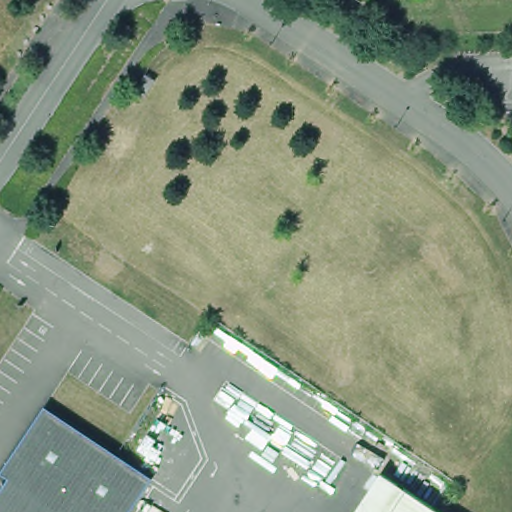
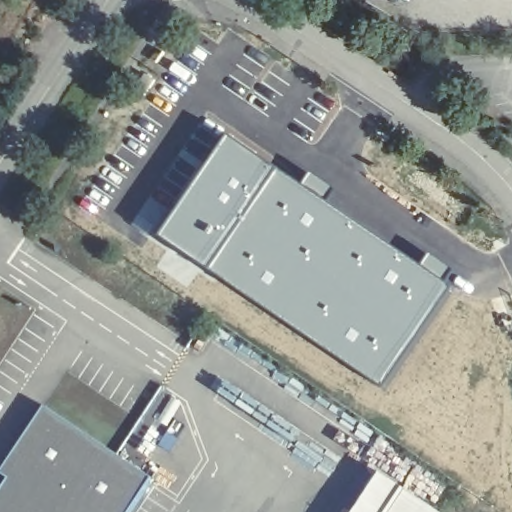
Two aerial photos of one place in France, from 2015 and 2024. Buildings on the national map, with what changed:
unchanged [(135,89),(145,75),(153,79),(143,95),(135,89)]
new [(230,134),(281,169),(210,273),(160,238),(230,134)]
new [(281,169),(304,184),(312,173),(335,189),(327,200),(423,265),(431,254),(453,269),(445,281),(453,287),(381,389),(210,273),(281,169)]
unchanged [(7,473),(0,467),(0,462),(41,404),(150,474),(124,512),(0,512),(0,482),(7,473)]
unchanged [(375,469),(440,512),(346,512),(375,469)]

